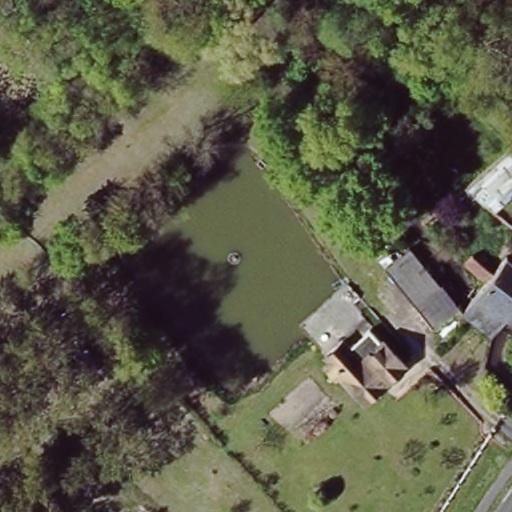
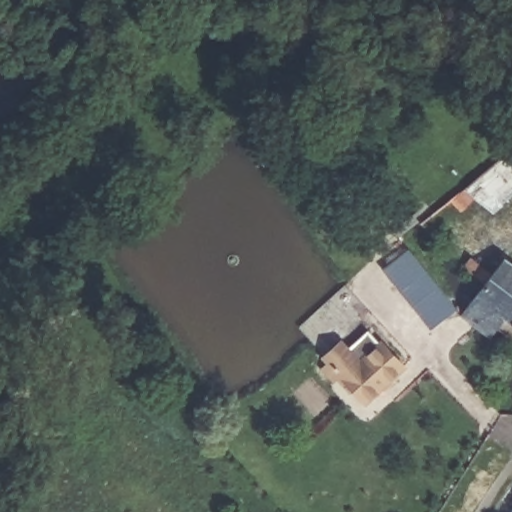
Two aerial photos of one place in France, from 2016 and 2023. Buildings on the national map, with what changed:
unchanged [(491,200),(476,216),(458,200),(475,186),(491,200)]
unchanged [(445,288),(423,303),(417,308),(390,270),(417,249),(445,288)]
unchanged [(469,266),(479,256),(496,273),(512,257),(512,258),(512,320),(495,340),(473,316),(472,307),(471,300),(479,295),(487,285),(469,266)]
unchanged [(407,366),(412,375),(366,408),(360,401),(327,355),(324,350),(343,335),(347,341),(352,347),(375,331),(385,344),(388,341),(407,366)]

